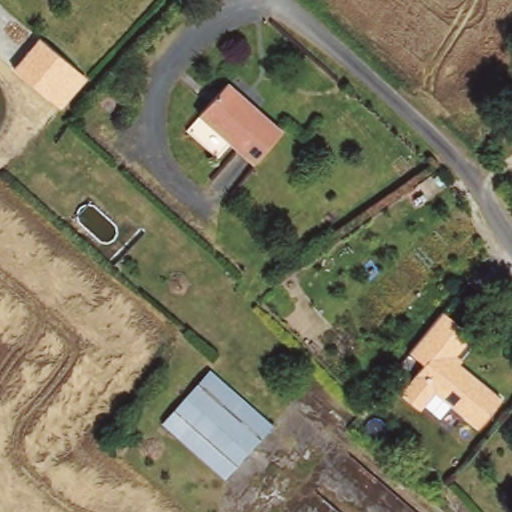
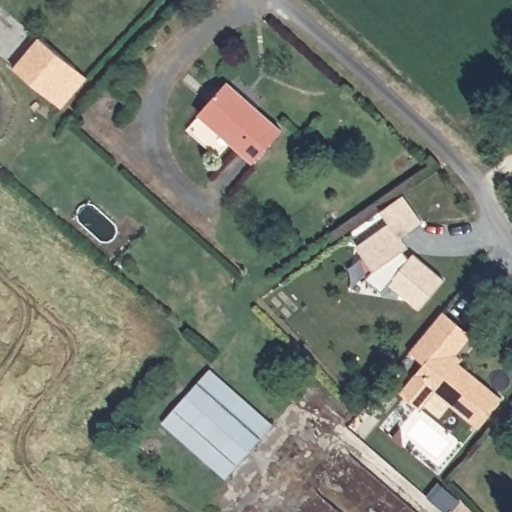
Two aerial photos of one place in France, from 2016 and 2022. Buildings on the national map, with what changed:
unchanged [(14,69),(40,37),(87,79),(60,108),(14,69)]
unchanged [(281,130),(250,165),(196,117),(226,81),(281,130)]
new [(389,283),(381,291),(367,279),(375,270),(356,245),(389,222),(381,210),(403,195),(423,222),(402,236),(409,246),(403,250),(409,259),(414,254),(444,278),(419,310),(389,283)]
unchanged [(472,333),(450,363),(498,396),(471,431),(428,397),(417,410),(398,396),(417,363),(404,353),(438,311),(472,333)]
unchanged [(270,418),(248,443),(185,388),(196,375),(208,361),(270,418)]
unchanged [(248,443),(222,471),(161,415),(185,388),(248,443)]

